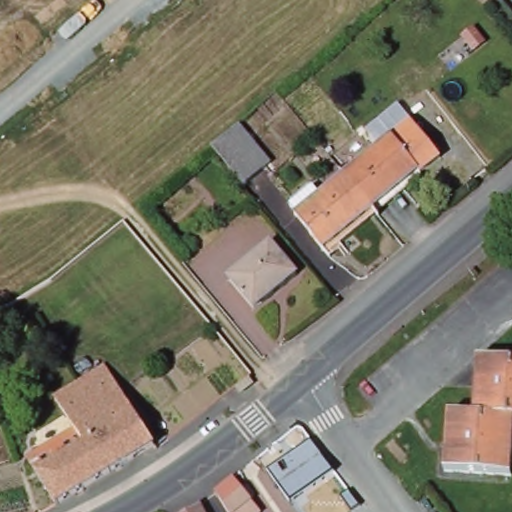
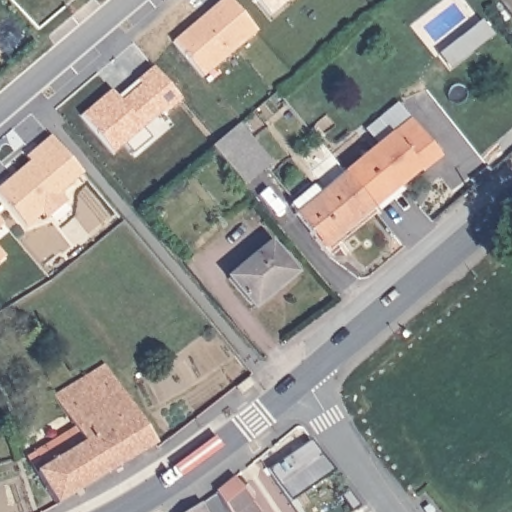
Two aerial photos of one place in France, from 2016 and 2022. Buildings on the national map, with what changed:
new [(202,75),(174,41),(222,0),(230,0),(257,31),(202,75)]
demolished [(464,25),(476,42),(441,69),(429,52),(464,25)]
new [(165,114),(162,111),(142,129),(150,139),(132,154),(124,143),(113,152),(82,115),(111,90),(117,97),(153,67),(181,100),(165,114)]
unchanged [(365,127),(397,101),(442,160),(423,174),(417,165),(389,131),(377,140),(365,127)]
unchanged [(239,117),(270,157),(242,180),(211,141),(239,117)]
unchanged [(389,131),(417,165),(371,203),(342,169),(389,131)]
new [(17,155),(42,134),(74,171),(51,191),(58,200),(37,217),(33,212),(17,225),(0,204),(0,177),(22,159),(17,155)]
unchanged [(371,203),(320,245),(292,211),(294,210),(290,205),(317,181),(322,186),(342,169),(371,203)]
new [(0,227),(0,222),(2,225),(0,227)]
unchanged [(267,242),(292,274),(250,308),(225,276),(267,242)]
new [(0,255),(2,258),(0,260),(0,255)]
demolished [(512,358),(512,418),(511,417),(507,473),(441,470),(443,412),(469,412),(471,356),(512,358)]
unchanged [(155,441),(90,480),(67,450),(83,438),(67,413),(56,420),(42,398),(104,361),(122,390),(155,441)]
unchanged [(335,472),(291,502),(268,470),(313,440),(335,472)]
unchanged [(56,500),(37,469),(27,454),(36,448),(45,464),(67,450),(90,480),(56,500)]
unchanged [(252,507),(246,512),(224,512),(214,500),(235,485),(252,507)]
unchanged [(205,512),(190,512),(201,505),(205,512)]

